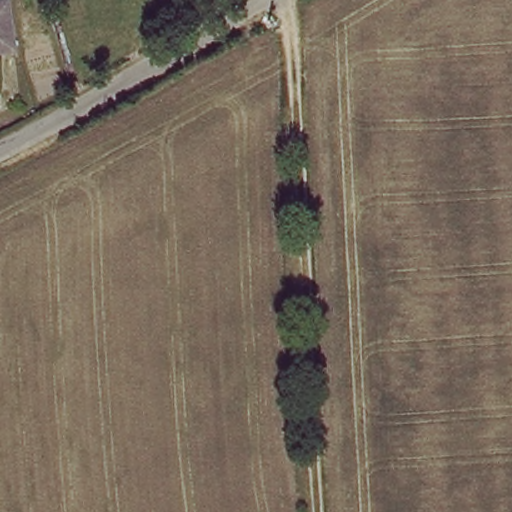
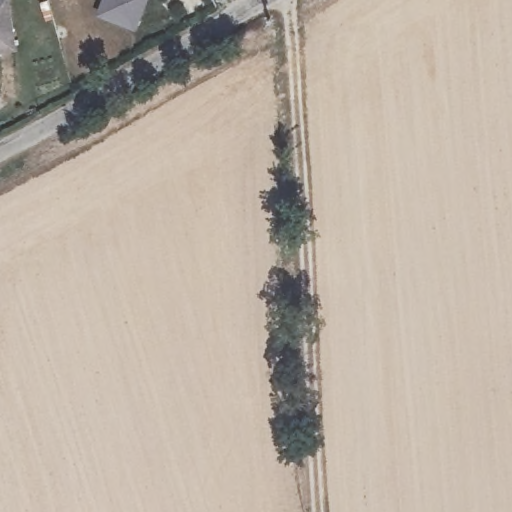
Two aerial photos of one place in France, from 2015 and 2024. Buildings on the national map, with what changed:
new [(96,17),(103,0),(147,0),(135,31),(96,17)]
unchanged [(10,50),(0,51),(0,3),(6,2),(10,50)]

